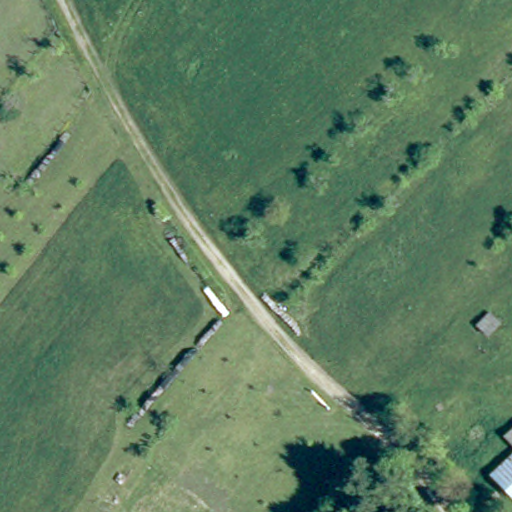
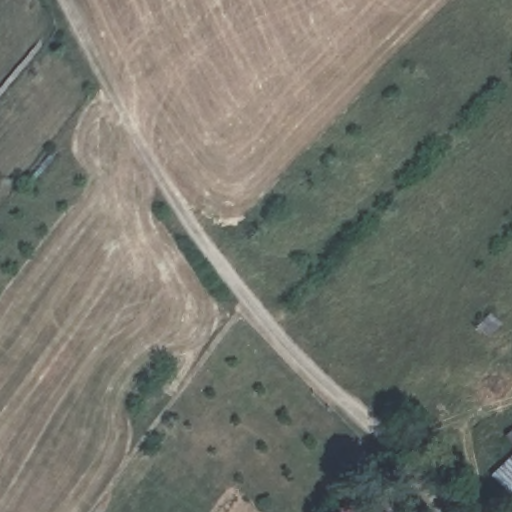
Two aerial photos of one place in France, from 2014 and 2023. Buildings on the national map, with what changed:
unchanged [(488,310),(498,321),(485,333),(475,322),(488,310)]
unchanged [(495,471),(512,457),(512,488),(495,471)]

